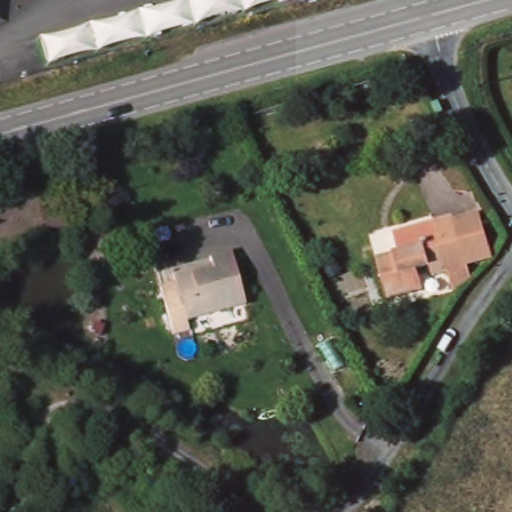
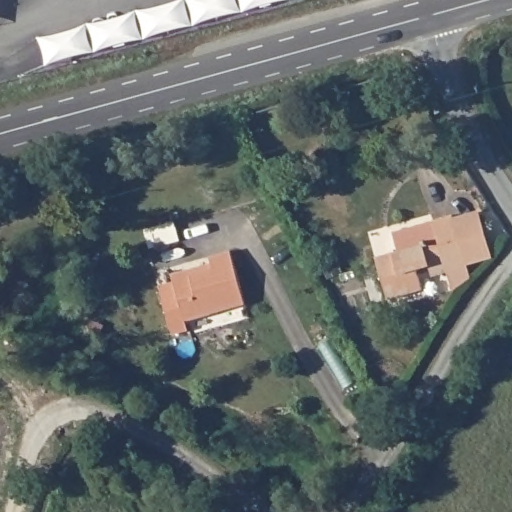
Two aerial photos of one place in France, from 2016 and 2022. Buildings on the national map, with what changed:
unchanged [(0,27),(0,0),(6,0),(2,27),(0,27)]
unchanged [(290,0),(50,68),(42,37),(176,0),(290,0)]
unchanged [(466,244),(459,220),(483,213),(496,256),(472,263),(466,244)]
unchanged [(476,278),(457,292),(452,272),(437,276),(434,265),(422,269),(427,289),(392,299),(380,258),(403,251),(398,233),(458,215),(459,220),(466,244),(472,263),(476,278)]
unchanged [(176,274),(194,269),(216,264),(214,257),(235,252),(250,304),(190,320),(193,330),(178,334),(171,311),(164,287),(179,283),(176,274)]

